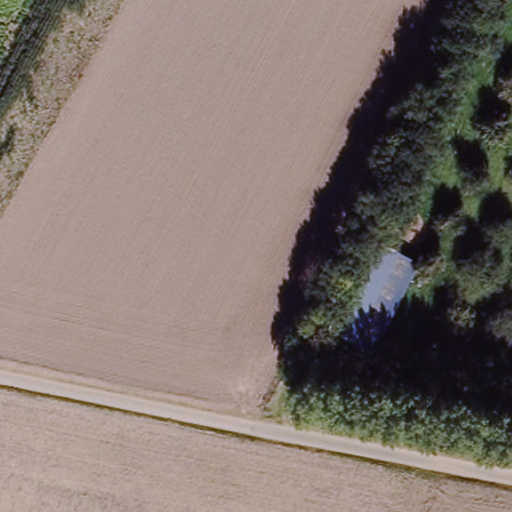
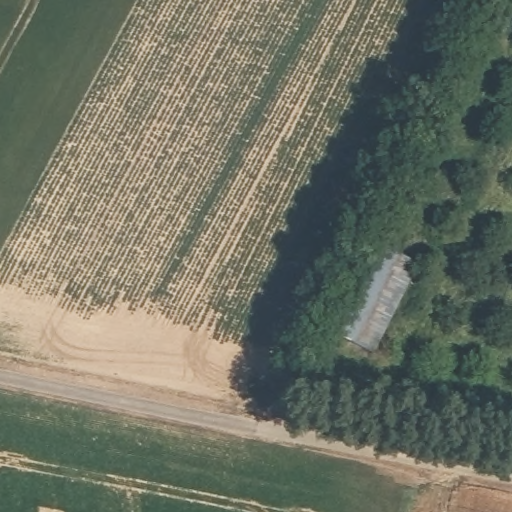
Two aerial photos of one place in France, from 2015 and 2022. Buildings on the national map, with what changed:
unchanged [(377,355),(331,340),(374,248),(419,267),(377,355)]

